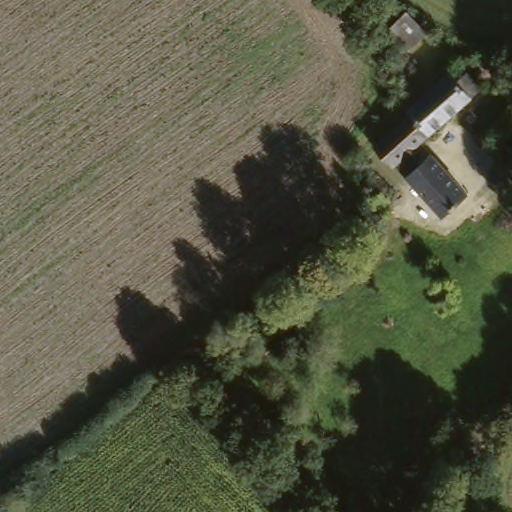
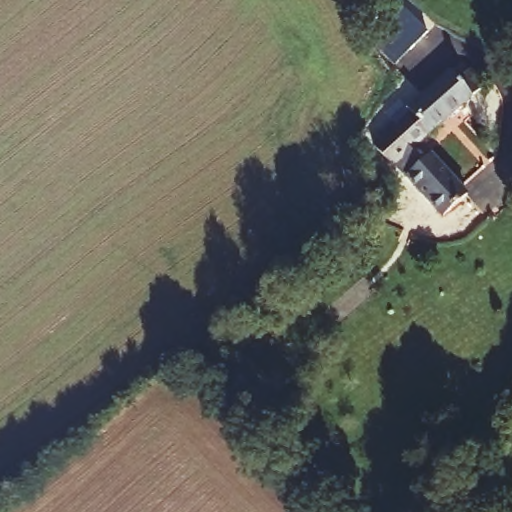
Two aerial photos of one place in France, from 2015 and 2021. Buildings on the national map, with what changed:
unchanged [(407,12),(430,37),(416,51),(393,25),(407,12)]
unchanged [(441,220),(431,206),(401,165),(398,166),(395,162),(392,165),(380,149),(396,136),(405,129),(418,119),(410,107),(429,94),(430,92),(455,75),(456,77),(467,69),(469,72),(472,70),(486,89),(419,142),(430,156),(432,155),(459,191),(465,200),(441,220)]

